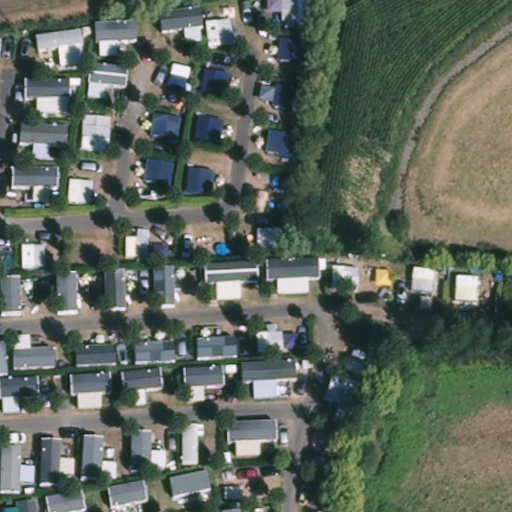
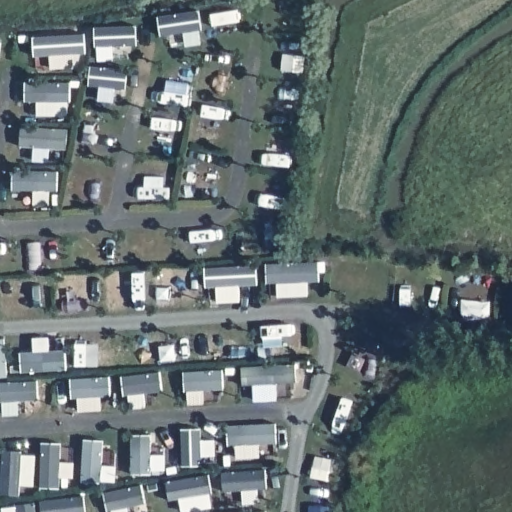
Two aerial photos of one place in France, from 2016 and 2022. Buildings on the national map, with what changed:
[]

